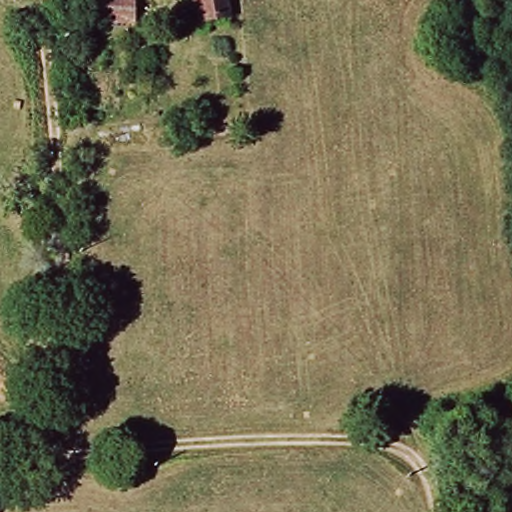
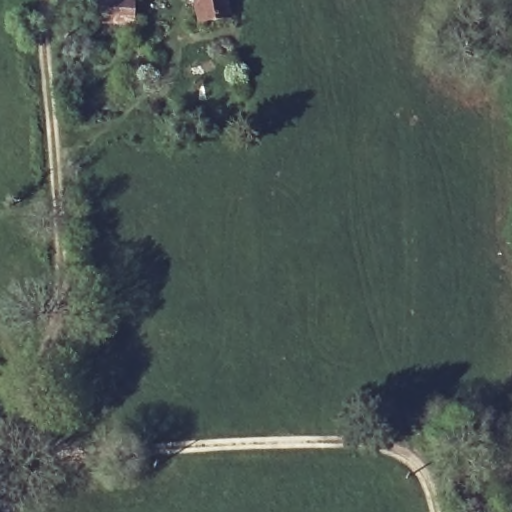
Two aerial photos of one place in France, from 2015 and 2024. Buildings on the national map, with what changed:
unchanged [(199,26),(194,0),(225,0),(228,23),(199,26)]
unchanged [(98,4),(133,6),(132,28),(97,27),(98,4)]

